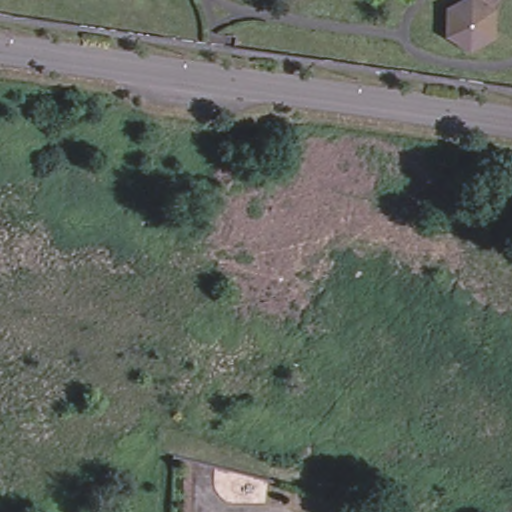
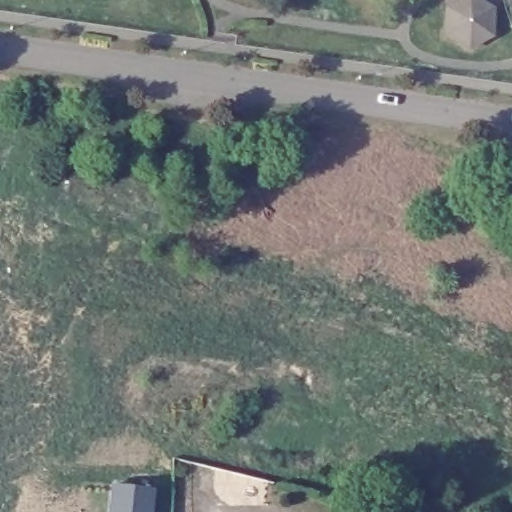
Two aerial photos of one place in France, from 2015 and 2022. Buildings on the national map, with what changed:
unchanged [(488,0),(498,6),(497,32),(473,45),(451,31),(451,4),(459,0),(488,0)]
new [(156,490),(153,512),(112,512),(114,485),(156,490)]

